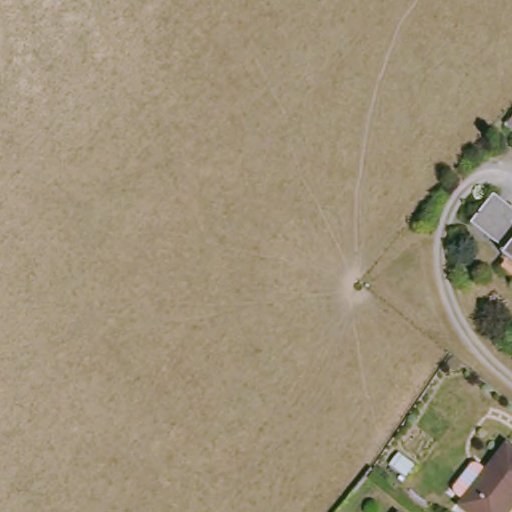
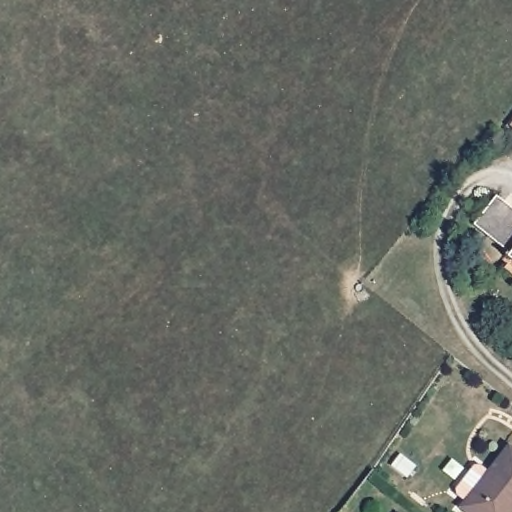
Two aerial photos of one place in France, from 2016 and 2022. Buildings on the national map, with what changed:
unchanged [(508,260),(511,257),(477,231),(499,202),(512,211),(512,263),(508,260)]
unchanged [(508,273),(512,268),(512,276),(508,273)]
unchanged [(507,512),(470,512),(462,506),(509,447),(512,450),(512,506),(507,512)]

